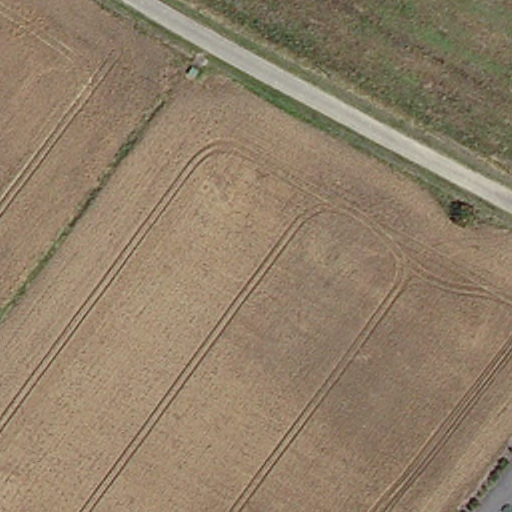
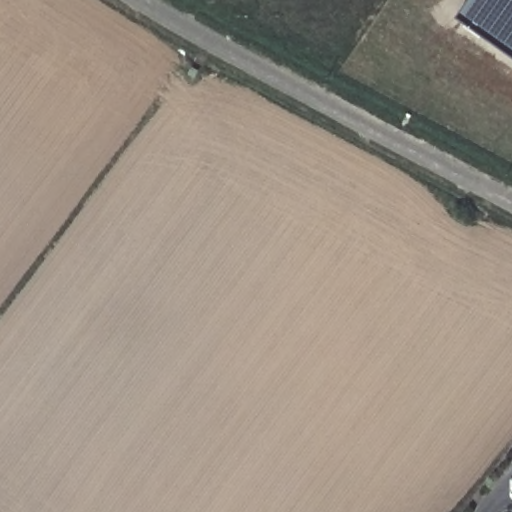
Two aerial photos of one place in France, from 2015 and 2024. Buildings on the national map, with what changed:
new [(469,0),(512,0),(512,50),(459,14),(469,0)]

